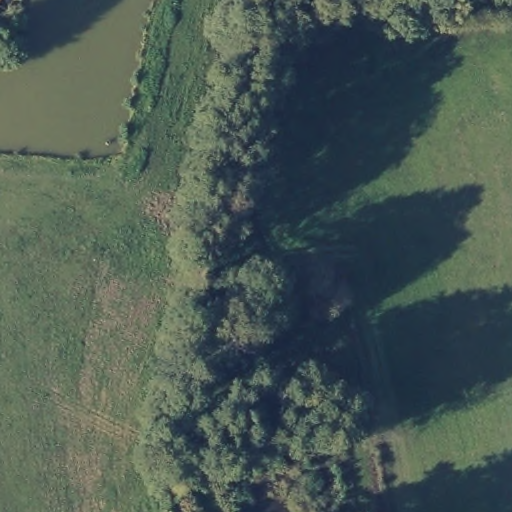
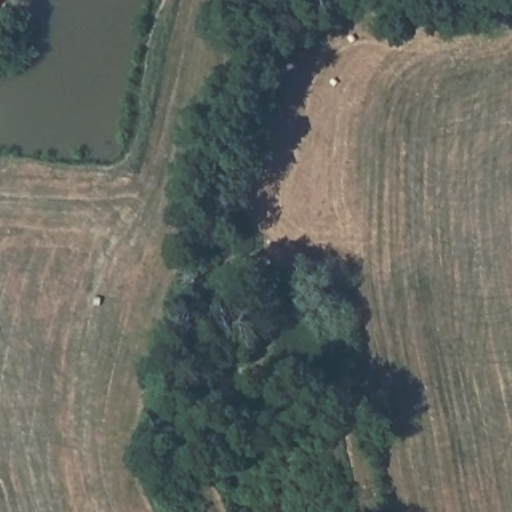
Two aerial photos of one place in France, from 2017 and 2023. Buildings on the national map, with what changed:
unchanged [(2,2),(0,5),(0,2),(2,2)]

